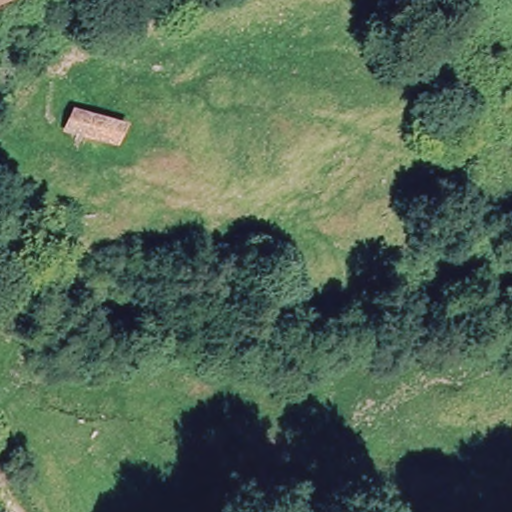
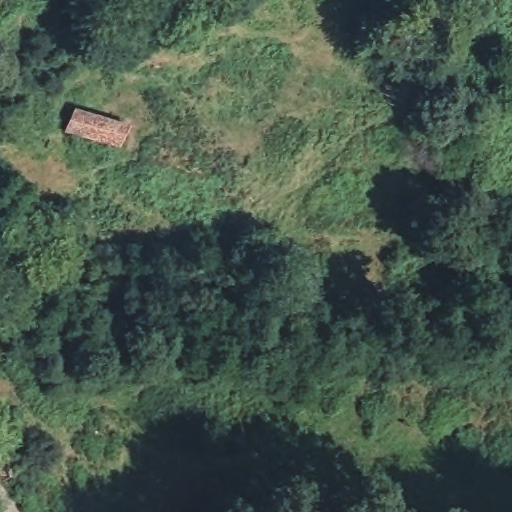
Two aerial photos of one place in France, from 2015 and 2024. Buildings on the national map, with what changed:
unchanged [(72,114),(131,129),(122,153),(68,136),(72,114)]

